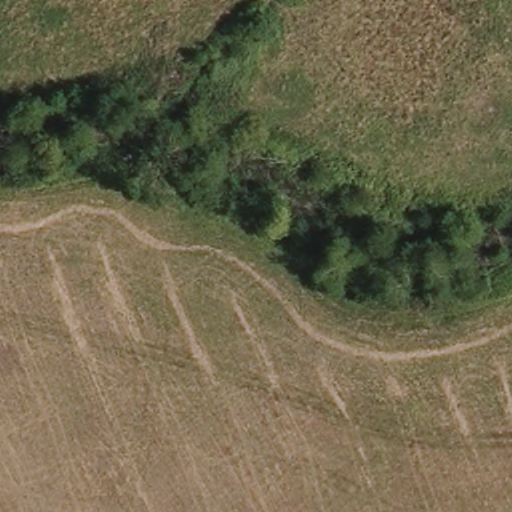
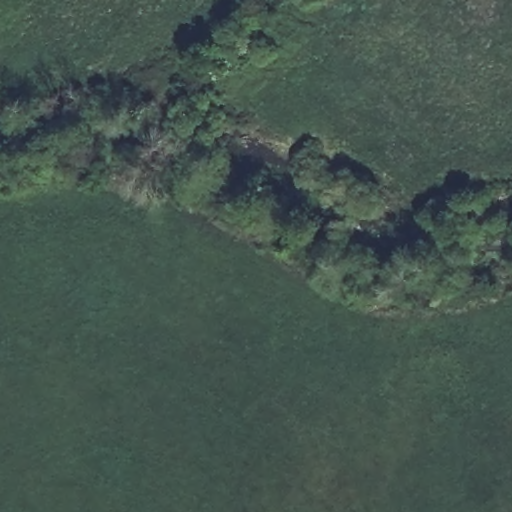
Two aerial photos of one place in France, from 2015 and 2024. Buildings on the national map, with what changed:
[]

